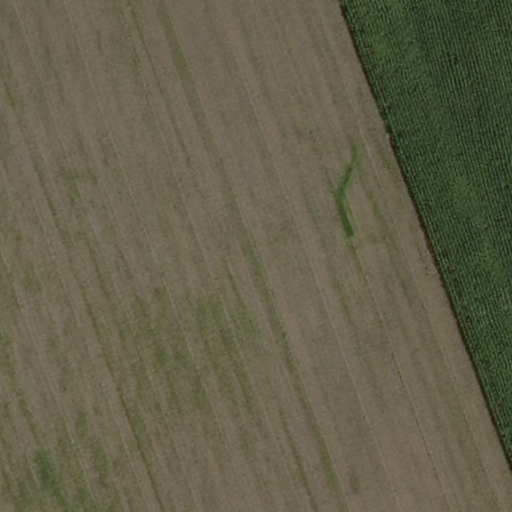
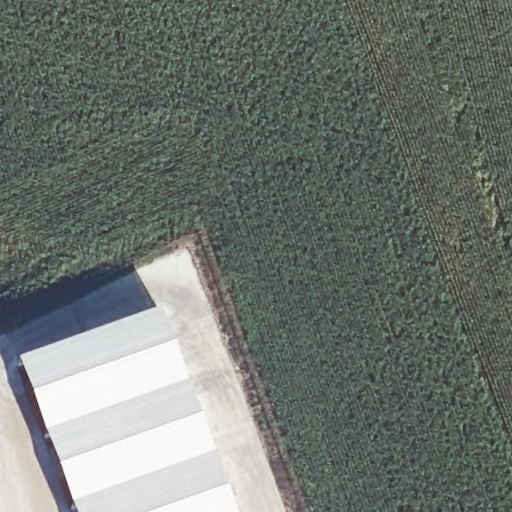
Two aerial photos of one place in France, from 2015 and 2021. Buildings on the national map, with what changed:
new [(160,313),(234,512),(73,512),(19,365),(160,313)]

